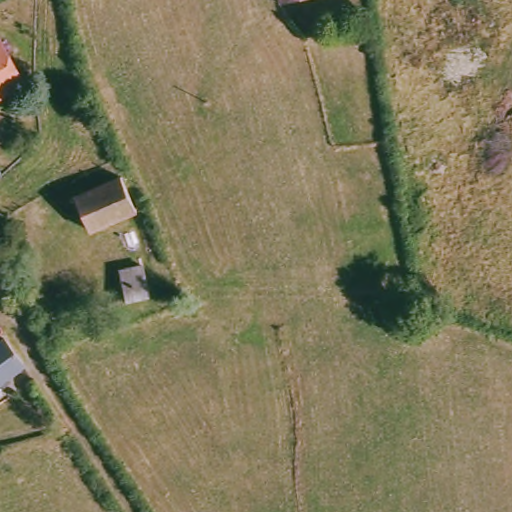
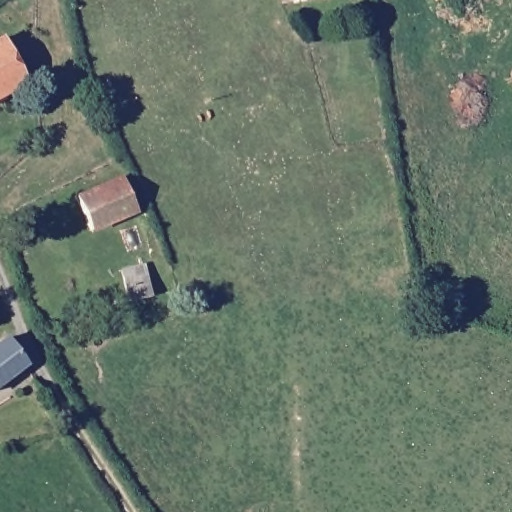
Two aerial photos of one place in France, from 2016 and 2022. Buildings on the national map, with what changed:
unchanged [(289,0),(297,0),(289,2),(289,0)]
unchanged [(28,85),(0,100),(0,44),(5,41),(28,85)]
unchanged [(133,180),(145,214),(98,232),(85,197),(133,180)]
unchanged [(115,274),(136,271),(141,302),(120,306),(115,274)]
unchanged [(0,389),(0,348),(9,341),(29,367),(0,389)]

